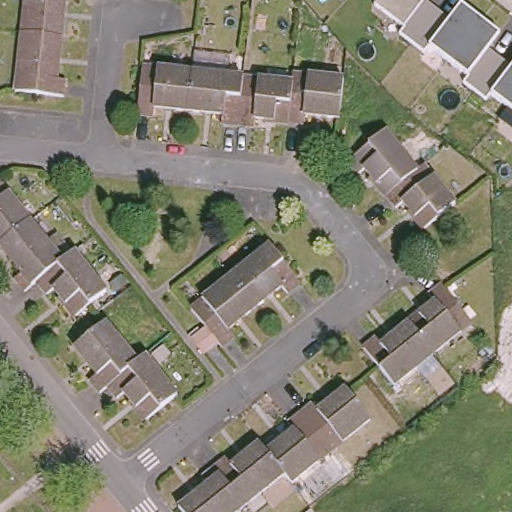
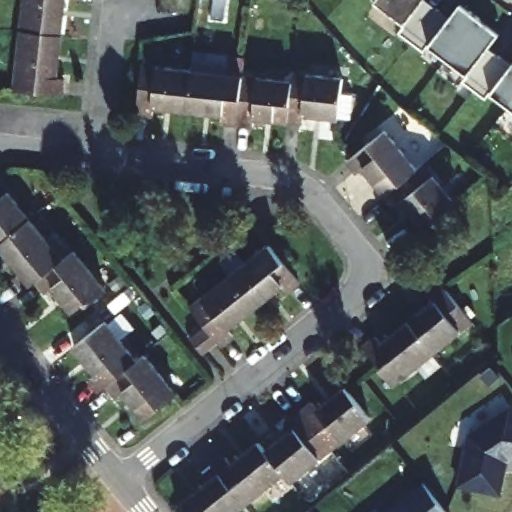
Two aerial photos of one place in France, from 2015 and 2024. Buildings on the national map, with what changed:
unchanged [(21,0),(62,0),(59,31),(18,27),(21,0)]
unchanged [(457,3),(497,32),(485,47),(510,64),(512,60),(512,110),(425,45),(369,4),(372,0),(421,0),(447,17),(457,3)]
unchanged [(55,73),(63,74),(62,90),(12,85),(18,27),(59,31),(55,73)]
unchanged [(156,107),(155,116),(140,114),(145,66),(195,71),(192,112),(156,107)]
unchanged [(224,123),(224,115),(192,112),(195,71),(247,77),(240,125),(224,123)]
unchanged [(295,73),(345,79),(341,119),(307,115),(306,125),(290,123),(295,82),(295,73)]
unchanged [(257,119),(257,127),(240,125),(247,77),(295,82),(290,123),(257,119)]
unchanged [(360,169),(355,172),(346,161),(384,131),(415,170),(382,197),(360,169)]
unchanged [(424,180),(430,175),(453,203),(420,230),(399,203),(392,208),(382,197),(415,170),(424,180)]
unchanged [(29,215),(0,239),(0,180),(29,215)]
unchanged [(60,255),(34,276),(22,286),(12,272),(17,267),(0,245),(0,239),(29,215),(60,255)]
unchanged [(272,240),(302,277),(291,286),(287,281),(259,303),(234,271),(272,240)]
unchanged [(60,255),(72,245),(105,285),(73,311),(50,283),(44,288),(34,276),(60,255)]
unchanged [(232,325),(236,331),(225,341),(221,337),(207,348),(195,334),(209,322),(194,303),(234,271),(259,303),(232,325)]
unchanged [(437,301),(432,294),(444,285),(475,323),(436,354),(410,322),(437,301)]
unchanged [(104,386),(94,375),(102,369),(79,341),(109,317),(140,356),(110,380),(104,386)]
unchanged [(397,386),(366,348),(379,337),(384,343),(410,322),(436,354),(397,386)]
unchanged [(127,386),(120,392),(110,380),(140,356),(147,350),(180,389),(149,413),(127,386)]
unchanged [(315,404),(320,410),(347,388),(372,419),(333,451),(303,413),(315,404)]
new [(467,435),(512,405),(512,460),(507,464),(500,495),(457,486),(467,435)]
unchanged [(295,483),(287,474),(269,451),(296,429),(291,423),(303,413),(333,451),(295,483)]
unchanged [(229,458),(235,464),(261,443),(269,451),(287,474),(247,506),(217,467),(229,458)]
unchanged [(186,512),(181,506),(210,483),(205,477),(217,467),(247,506),(239,512),(186,512)]
new [(385,512),(424,482),(446,511),(447,512),(385,512)]

